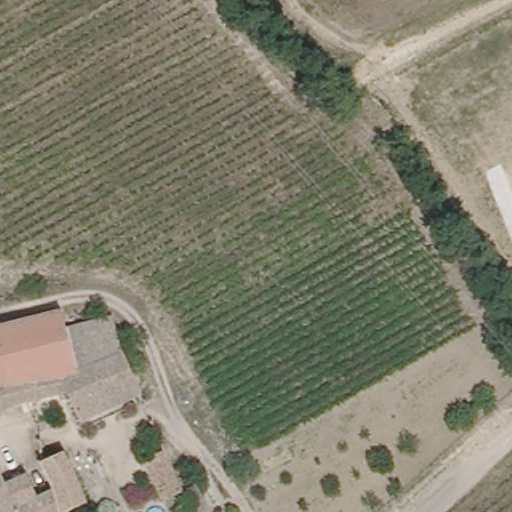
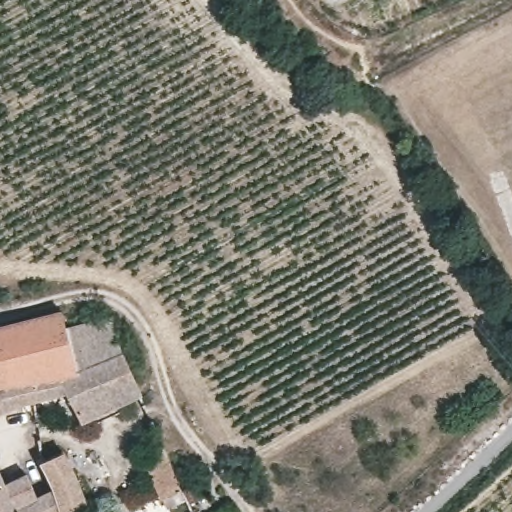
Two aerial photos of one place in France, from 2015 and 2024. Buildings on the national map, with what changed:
unchanged [(22,401),(8,406),(0,409),(0,324),(63,309),(67,326),(111,318),(121,356),(141,397),(115,407),(80,422),(68,394),(60,397),(57,391),(35,397),(22,401)]
unchanged [(145,456),(165,447),(185,492),(164,501),(145,456)]
unchanged [(52,485),(41,459),(61,451),(83,501),(62,510),(52,485)]
unchanged [(4,478),(27,468),(35,488),(40,490),(52,485),(62,510),(63,512),(0,512),(0,471),(4,478)]

